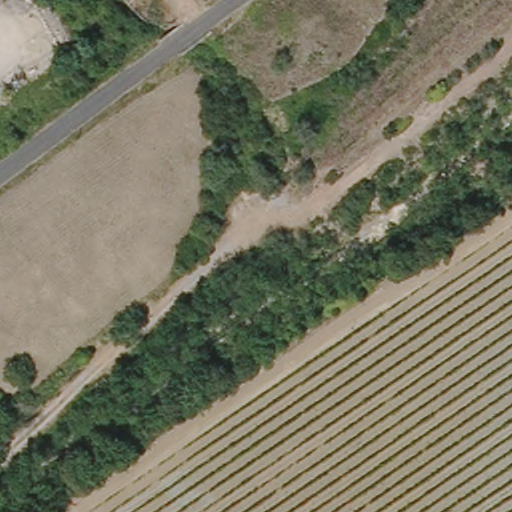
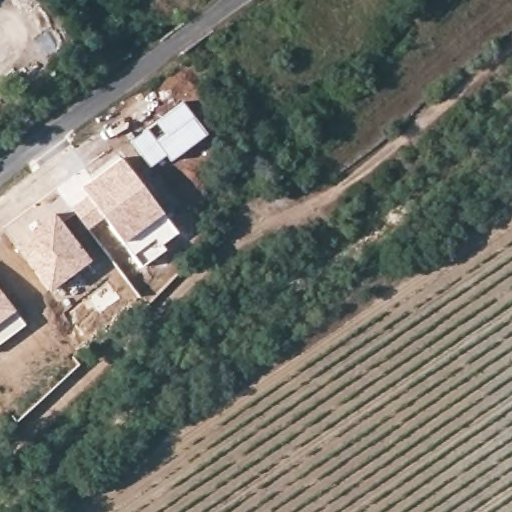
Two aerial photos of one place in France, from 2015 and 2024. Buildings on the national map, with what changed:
new [(181,101),(206,134),(170,161),(166,155),(150,167),(131,140),(181,101)]
new [(79,185),(91,175),(119,156),(176,232),(160,245),(164,250),(140,267),(131,255),(121,244),(102,218),(87,230),(69,206),(85,194),(79,185)]
new [(54,211),(90,259),(48,291),(13,243),(54,211)]
new [(25,324),(0,342),(0,291),(25,324)]

